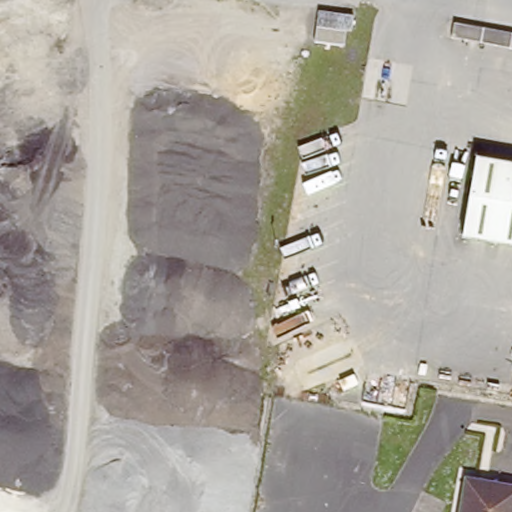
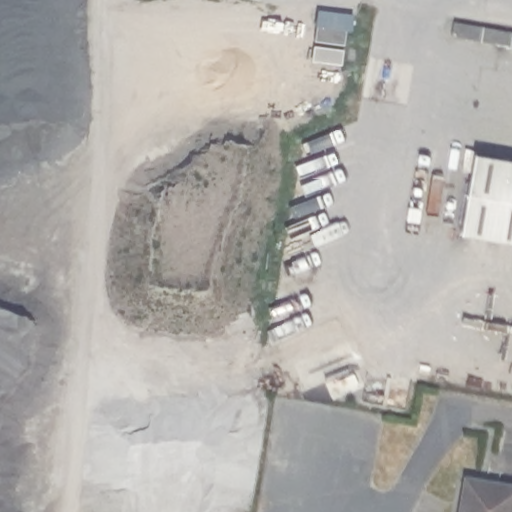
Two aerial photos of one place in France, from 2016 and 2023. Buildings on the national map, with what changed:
unchanged [(512,34),(512,49),(451,39),(453,23),(512,34)]
unchanged [(512,164),(512,250),(461,241),(474,157),(512,164)]
unchanged [(464,479),(512,487),(512,512),(459,512),(464,479)]

